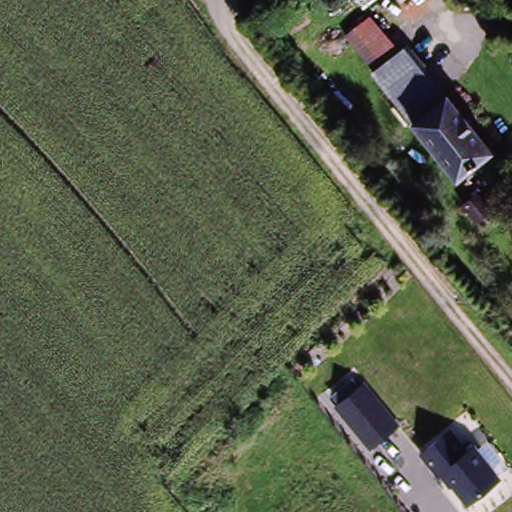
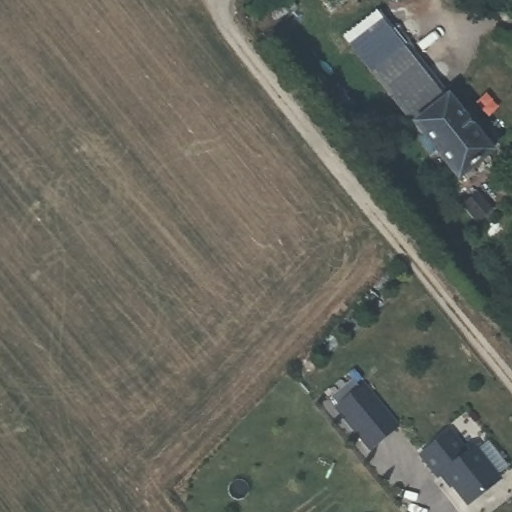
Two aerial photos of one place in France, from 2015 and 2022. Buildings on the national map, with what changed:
unchanged [(365,7),(360,0),(375,0),(365,7)]
unchanged [(378,74),(346,34),(371,15),(415,67),(389,88),(378,74)]
unchanged [(415,67),(433,88),(438,85),(446,96),(448,95),(493,151),(457,178),(412,123),(415,120),(389,88),(415,67)]
unchanged [(478,191),(493,211),(478,222),(462,204),(478,191)]
unchanged [(327,395),(352,378),(360,387),(363,384),(400,426),(369,450),(327,395)]
unchanged [(457,432),(475,454),(481,449),(505,481),(480,502),(472,501),(450,472),(446,476),(428,453),(457,432)]

